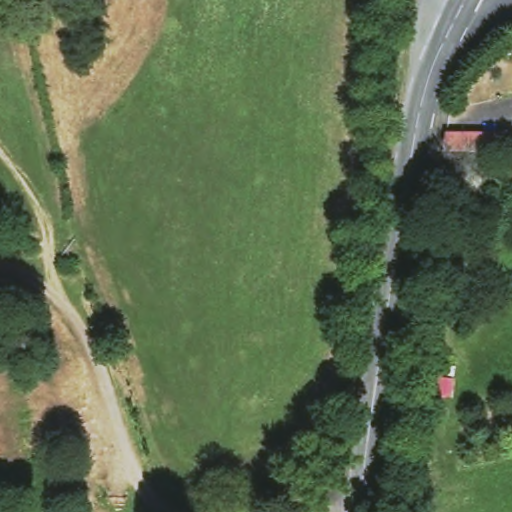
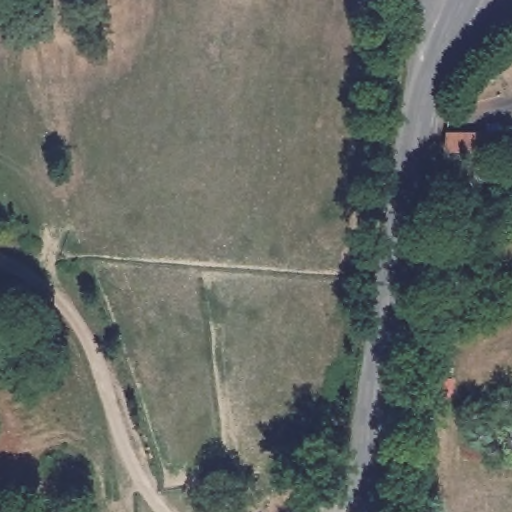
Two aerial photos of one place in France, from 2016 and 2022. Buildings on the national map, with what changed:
unchanged [(504,134),(503,152),(468,151),(469,133),(504,134)]

